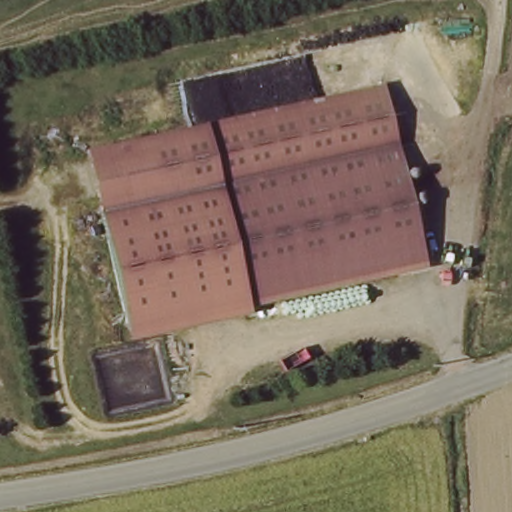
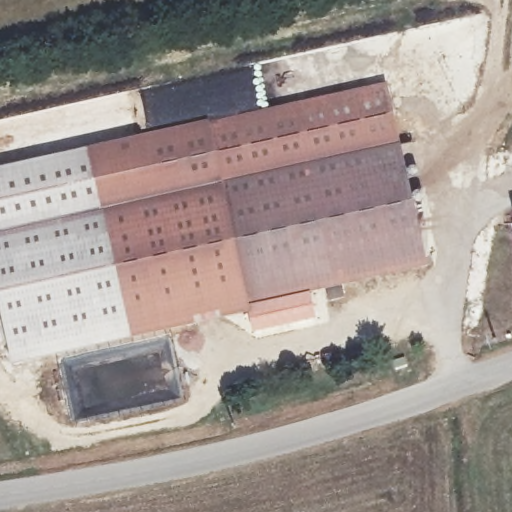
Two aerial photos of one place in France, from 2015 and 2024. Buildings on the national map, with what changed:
unchanged [(130,339),(88,152),(387,84),(397,144),(425,261),(247,302),(130,339)]
new [(12,365),(0,309),(0,170),(88,152),(130,339),(12,365)]

